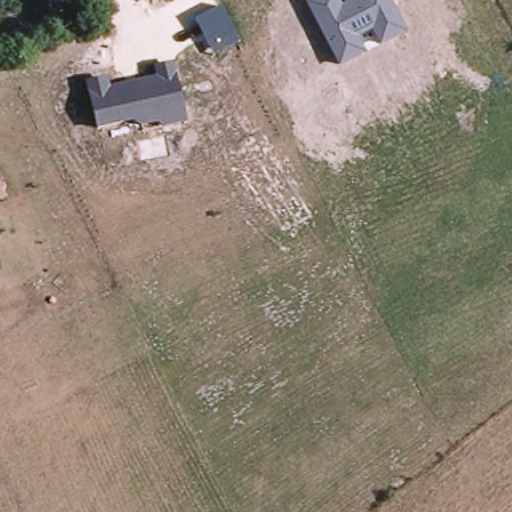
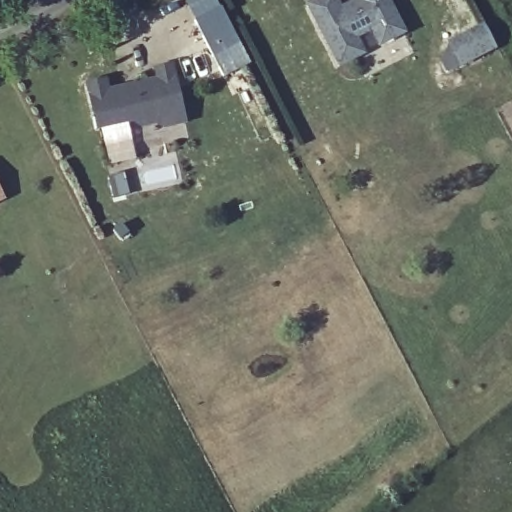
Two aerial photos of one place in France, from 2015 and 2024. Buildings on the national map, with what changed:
unchanged [(336,0),(340,8),(353,2),(352,0),(389,0),(407,34),(379,49),(371,32),(357,40),(365,56),(338,70),(305,5),(315,0),(336,0)]
unchanged [(238,44),(213,58),(194,24),(219,10),(238,44)]
new [(439,54),(450,49),(447,42),(482,24),(496,50),(449,74),(439,54)]
unchanged [(108,79),(111,89),(155,79),(154,69),(173,64),(187,125),(166,130),(158,125),(143,129),(131,123),(97,131),(85,84),(108,79)]
unchanged [(0,201),(0,186),(6,198),(0,201)]

